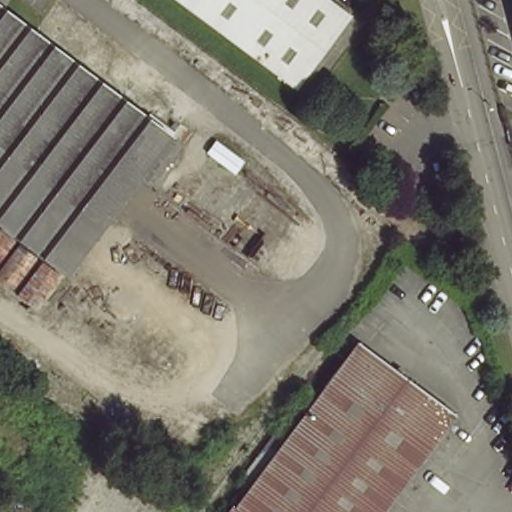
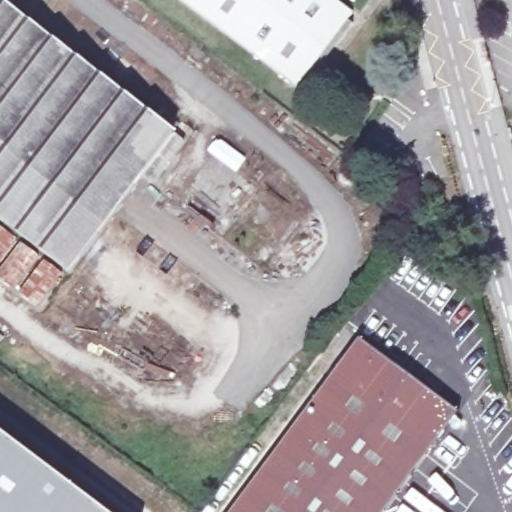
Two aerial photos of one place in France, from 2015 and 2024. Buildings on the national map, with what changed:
unchanged [(183,0),(337,0),(357,15),(340,37),(298,88),(183,0)]
unchanged [(0,1),(180,143),(150,182),(142,175),(63,273),(0,224),(0,1)]
unchanged [(302,375),(311,362),(333,379),(363,339),(461,414),(388,512),(234,512),(252,488),(297,427),(324,392),(302,375)]
unchanged [(240,480),(286,418),(297,427),(252,488),(240,480)]
new [(0,512),(0,431),(17,444),(106,512),(0,512)]

